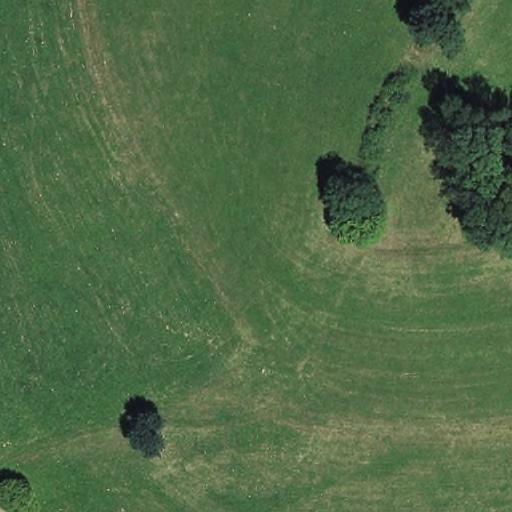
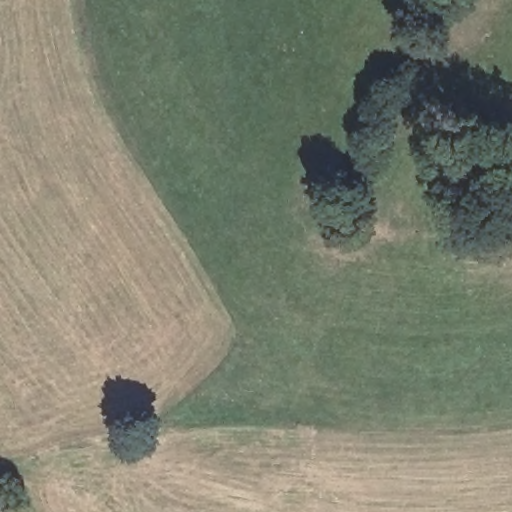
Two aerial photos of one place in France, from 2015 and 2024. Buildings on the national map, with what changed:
[]

